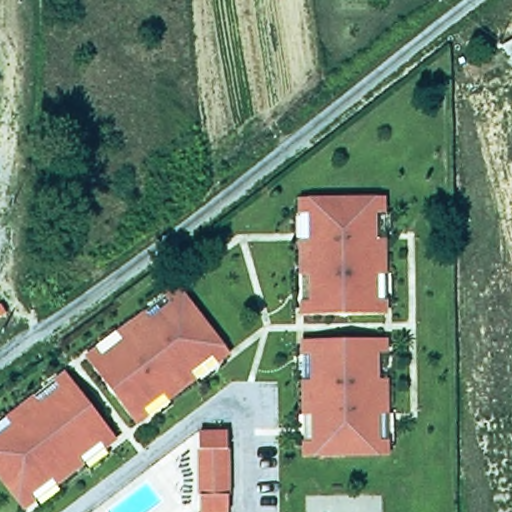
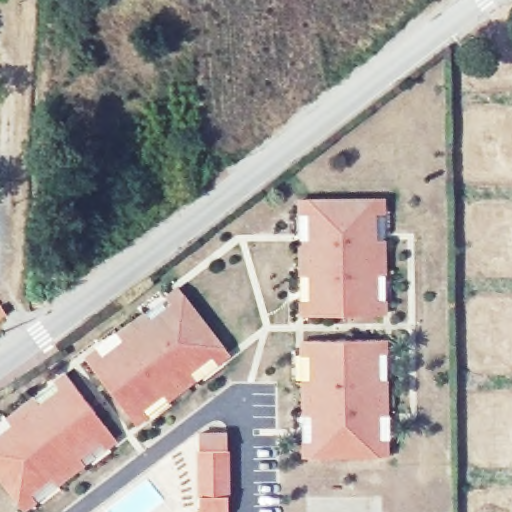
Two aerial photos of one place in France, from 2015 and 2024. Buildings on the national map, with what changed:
unchanged [(375,300),(383,300),(384,314),(302,315),(302,301),(312,301),(311,275),(302,275),(302,240),(310,240),(310,214),(301,214),(301,200),(382,199),(382,213),(373,213),(374,239),(383,239),(383,273),(375,274),(375,300)]
unchanged [(190,372),(195,379),(167,399),(162,392),(141,408),(147,415),(135,424),(86,359),(97,351),(102,358),(123,342),(118,335),(145,314),(151,321),(172,305),(167,298),(178,289),(227,354),(216,363),(210,356),(190,372)]
unchanged [(385,414),(377,414),(377,441),(385,440),(386,454),(305,456),(305,442),(313,442),(313,415),(305,415),(304,381),(313,381),(312,354),(303,355),(303,340),(385,339),(385,353),(376,354),(376,380),(385,380),(385,414)]
unchanged [(77,457),(83,464),(55,484),(50,477),(29,493),(35,500),(23,509),(0,478),(0,436),(12,427),(7,420),(33,399),(39,406),(60,390),(55,383),(66,374),(115,439),(104,448),(98,441),(77,457)]
unchanged [(200,512),(198,432),(227,432),(228,512),(200,512)]

